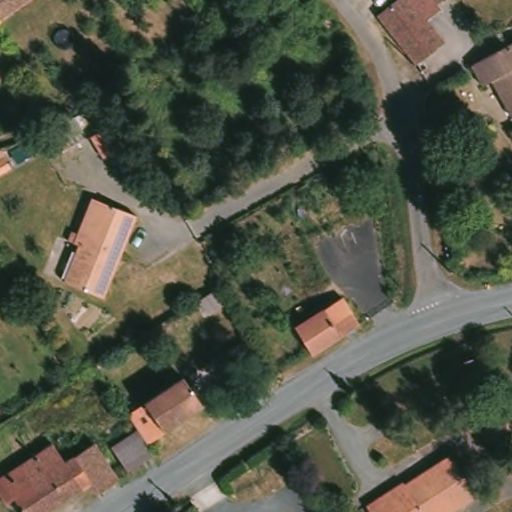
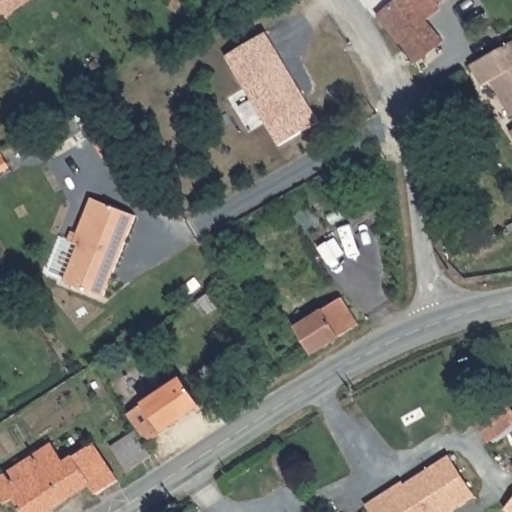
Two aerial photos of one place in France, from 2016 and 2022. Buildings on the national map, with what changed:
unchanged [(5,19),(0,22),(0,0),(32,0),(5,19)]
unchanged [(416,64),(410,56),(407,51),(376,15),(398,0),(445,0),(437,5),(442,12),(427,23),(443,45),(416,64)]
new [(320,121),(279,145),(227,56),(265,31),(320,121)]
unchanged [(508,117),(490,80),(480,84),(471,63),(512,44),(512,116),(508,117)]
unchanged [(90,124),(80,129),(55,144),(51,137),(72,125),(85,117),(90,124)]
unchanged [(115,128),(128,150),(125,151),(110,160),(98,138),(115,128)]
unchanged [(504,133),(508,131),(512,130),(512,150),(510,146),(504,133)]
unchanged [(18,170),(0,180),(0,167),(12,160),(18,170)]
unchanged [(64,272),(78,241),(68,236),(75,223),(80,225),(92,200),(135,220),(102,290),(64,272)]
unchanged [(222,304),(210,312),(201,298),(214,290),(222,304)]
unchanged [(341,297),(357,322),(310,353),(300,340),(293,328),(320,311),(341,297)]
unchanged [(135,437),(121,417),(179,380),(199,407),(140,446),(148,457),(122,475),(109,454),(135,437)]
unchanged [(45,512),(21,512),(13,500),(5,505),(0,498),(0,476),(54,442),(67,460),(92,445),(117,481),(103,490),(95,495),(87,485),(45,512)]
unchanged [(390,498),(402,493),(398,485),(448,460),(471,502),(452,512),(371,512),(367,505),(388,495),(390,498)]

